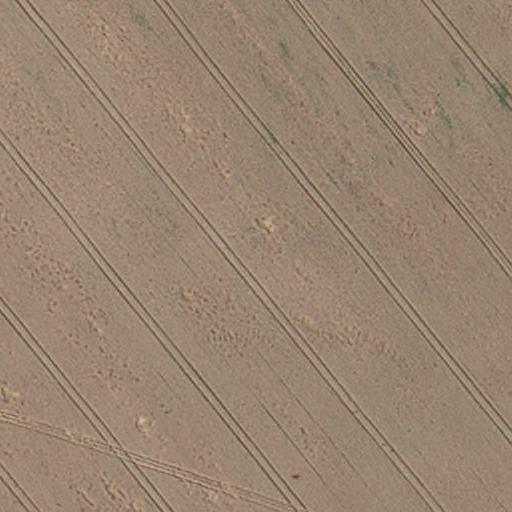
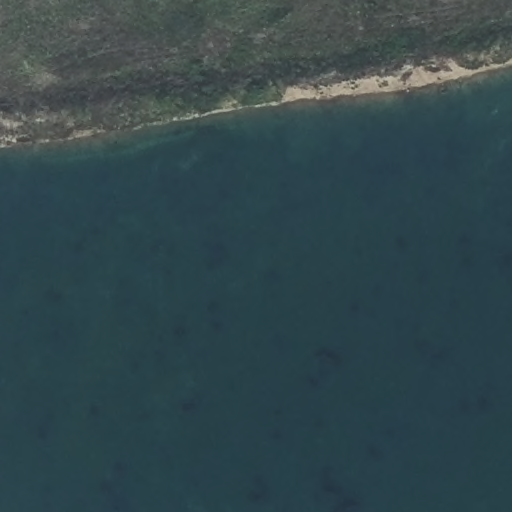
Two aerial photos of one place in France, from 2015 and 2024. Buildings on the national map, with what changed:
[]

